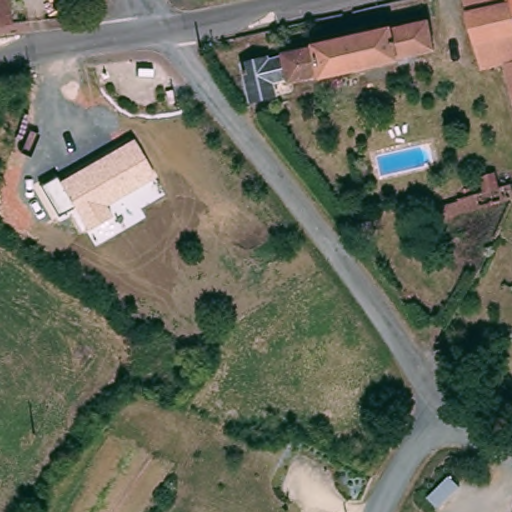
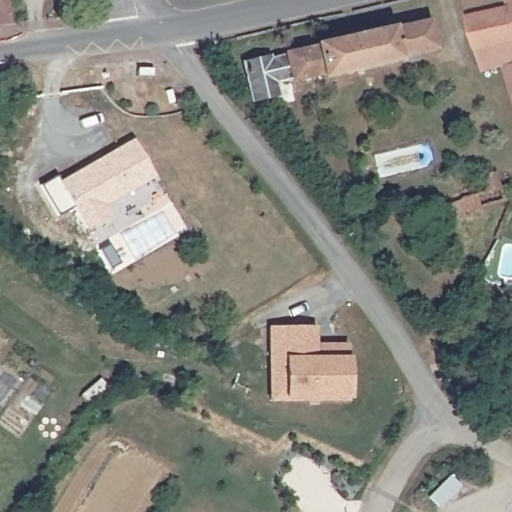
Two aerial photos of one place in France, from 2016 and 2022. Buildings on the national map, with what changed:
unchanged [(6,0),(11,25),(0,26),(0,0),(6,0)]
unchanged [(482,69),(466,11),(463,0),(511,0),(512,4),(512,90),(503,63),(482,69)]
unchanged [(512,4),(511,0),(512,0),(512,4)]
unchanged [(284,56),(285,55),(316,47),(316,45),(392,26),(393,29),(428,20),(435,49),(400,57),(400,59),(322,77),(321,75),(291,81),(290,78),(276,81),(278,95),(253,100),(245,65),(284,56)]
unchanged [(156,176),(106,207),(111,217),(87,231),(72,207),(57,216),(40,187),(57,177),(61,181),(133,139),(156,176)]
unchanged [(442,206),(484,195),(480,181),(495,177),(500,191),(512,188),(512,189),(512,204),(446,221),(442,206)]
unchanged [(433,210),(437,224),(427,225),(424,212),(433,210)]
unchanged [(372,224),(375,239),(361,241),(357,226),(372,224)]
new [(322,340),(339,340),(355,340),(357,392),(278,393),(277,323),(322,322),(322,340)]

